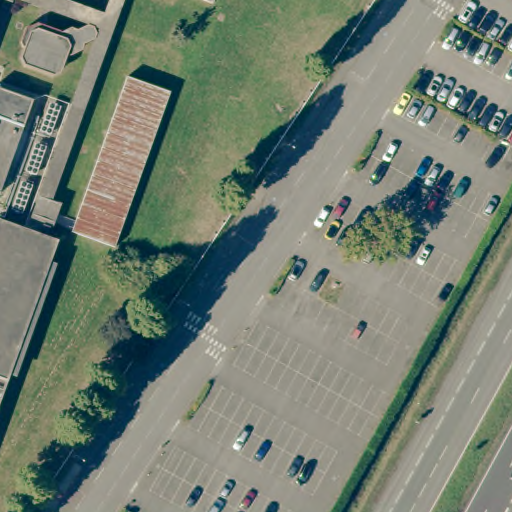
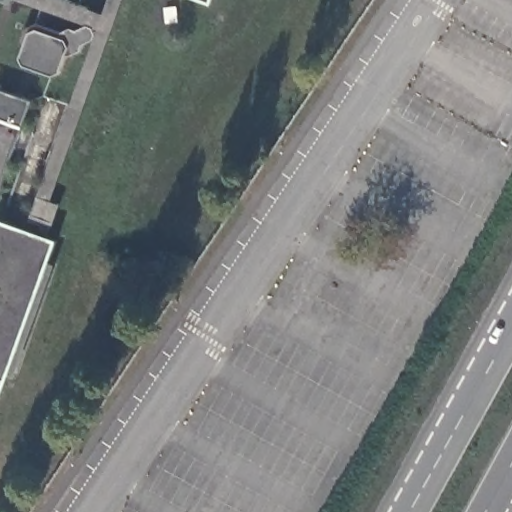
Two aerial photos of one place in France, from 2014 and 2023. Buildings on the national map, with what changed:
unchanged [(191,0),(219,0),(216,9),(191,0)]
unchanged [(63,81),(59,85),(53,87),(41,83),(27,77),(25,70),(28,61),(24,55),(25,47),(30,41),(39,37),(46,38),(63,44),(67,42),(74,41),(83,48),(84,52),(82,57),(85,60),(82,65),(74,67),(68,66),(63,81)]
demolished [(114,245),(71,230),(137,47),(180,62),(114,245)]
unchanged [(32,102),(0,192),(0,91),(32,102)]
unchanged [(44,187),(30,227),(7,218),(21,179),(44,187)]
unchanged [(62,245),(0,419),(0,228),(2,222),(62,245)]

